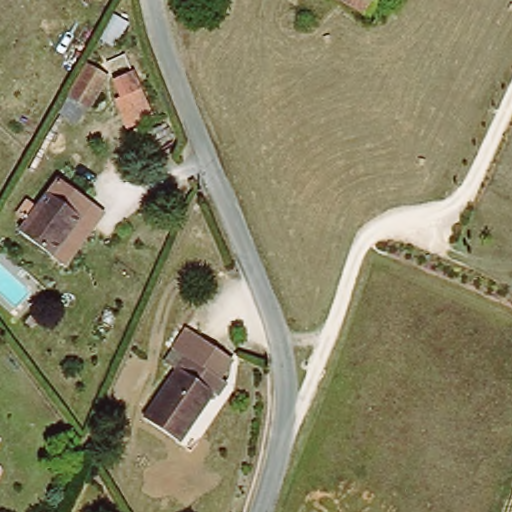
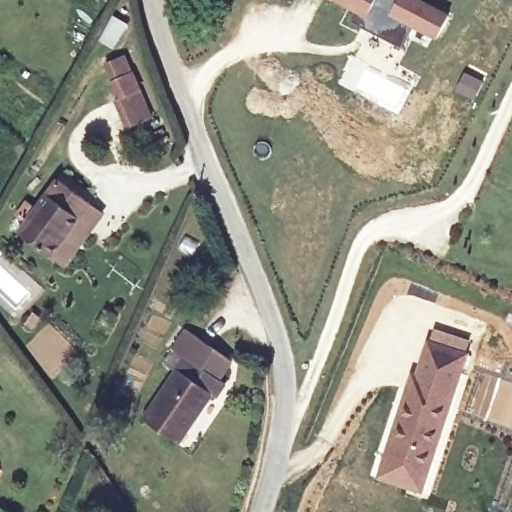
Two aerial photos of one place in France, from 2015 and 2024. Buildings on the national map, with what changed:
new [(437,38),(413,27),(403,46),(350,20),(355,11),(334,0),(421,0),(448,15),(437,38)]
demolished [(372,0),(368,10),(343,0),(372,0)]
unchanged [(82,65),(86,67),(93,56),(109,66),(102,77),(107,79),(85,115),(62,98),(82,65)]
unchanged [(152,119),(127,129),(115,100),(118,99),(112,82),(135,72),(152,119)]
unchanged [(24,241),(60,184),(95,206),(58,262),(24,241)]
new [(466,353),(470,353),(422,495),(377,479),(412,372),(417,373),(427,341),(432,341),(435,330),(468,341),(466,353)]
unchanged [(220,387),(212,382),(179,435),(137,408),(177,337),(226,371),(220,387)]

